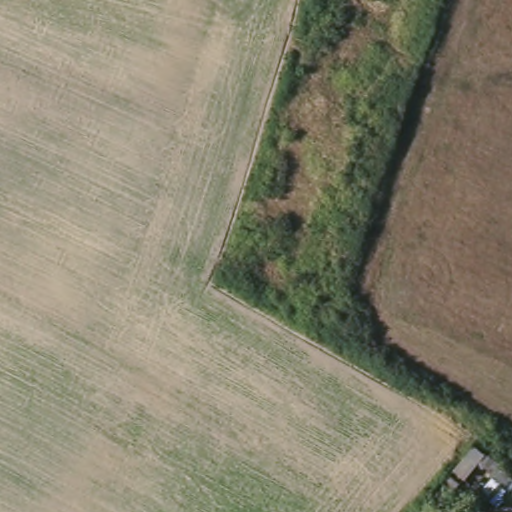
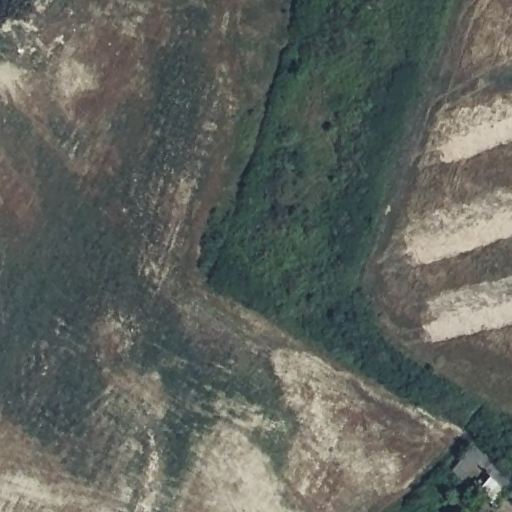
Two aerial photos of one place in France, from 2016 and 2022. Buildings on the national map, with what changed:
unchanged [(499,505),(481,490),(494,479),(482,465),(467,484),(453,472),(474,443),(512,476),(512,498),(509,495),(499,505)]

